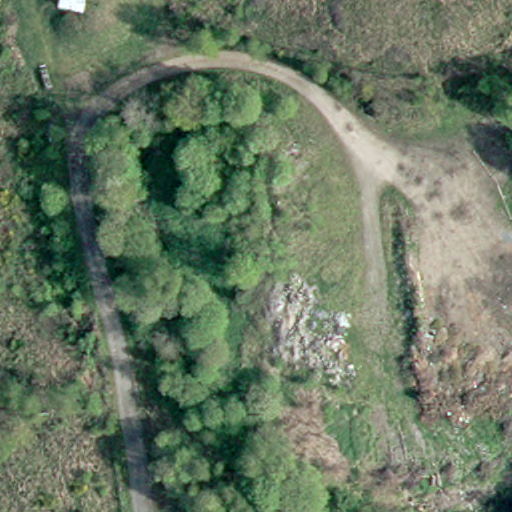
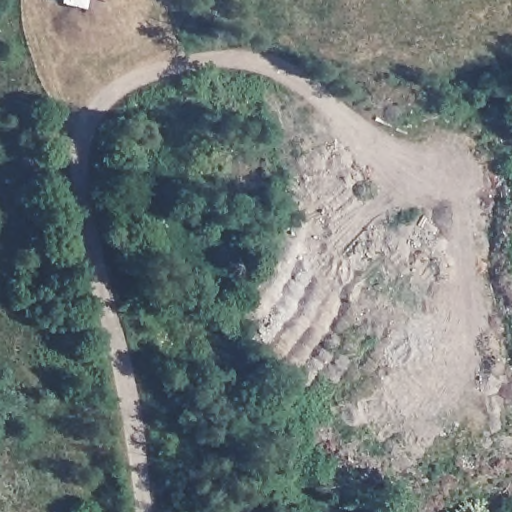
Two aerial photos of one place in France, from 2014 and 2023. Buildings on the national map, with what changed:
unchanged [(54,6),(55,0),(88,0),(86,9),(54,6)]

